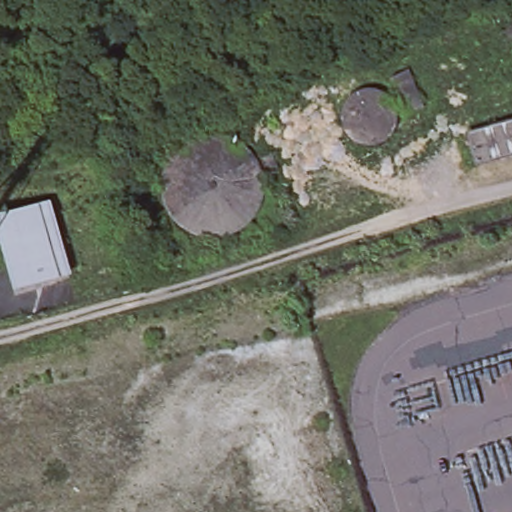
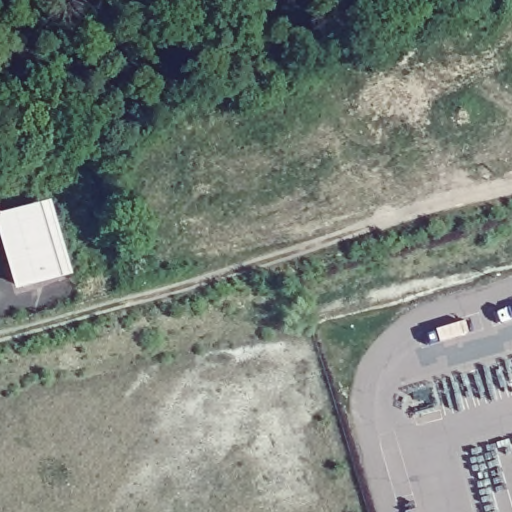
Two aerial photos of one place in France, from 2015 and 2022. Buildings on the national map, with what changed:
demolished [(475,165),(467,134),(512,121),(512,154),(475,165)]
demolished [(277,168),(262,174),(255,160),(271,154),(277,168)]
unchanged [(22,287),(1,216),(38,206),(58,276),(22,287)]

